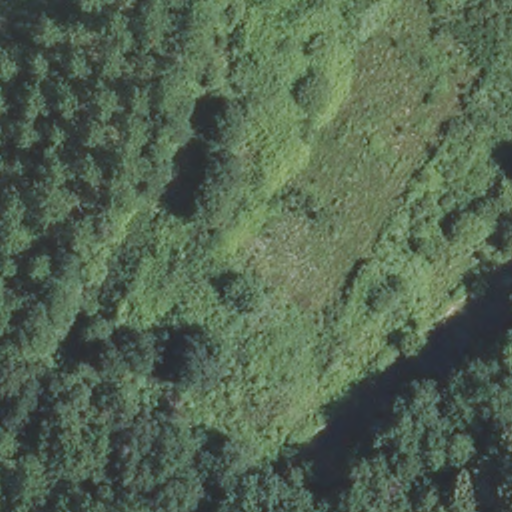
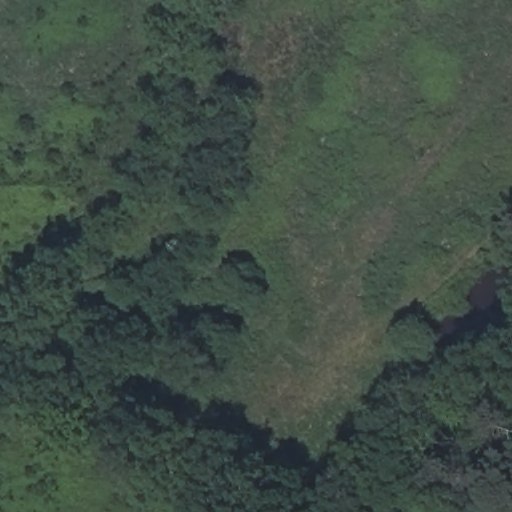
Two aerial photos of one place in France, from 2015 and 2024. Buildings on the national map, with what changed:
[]

